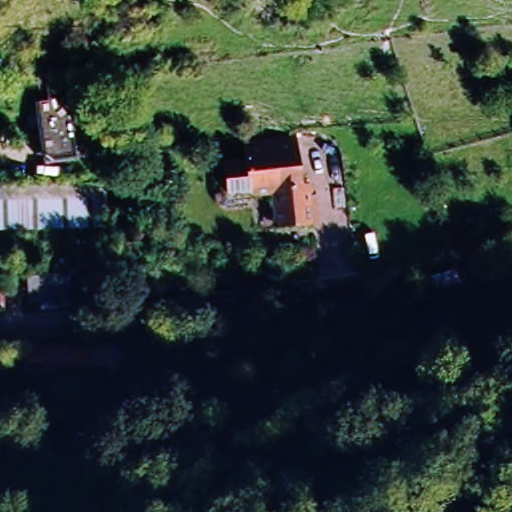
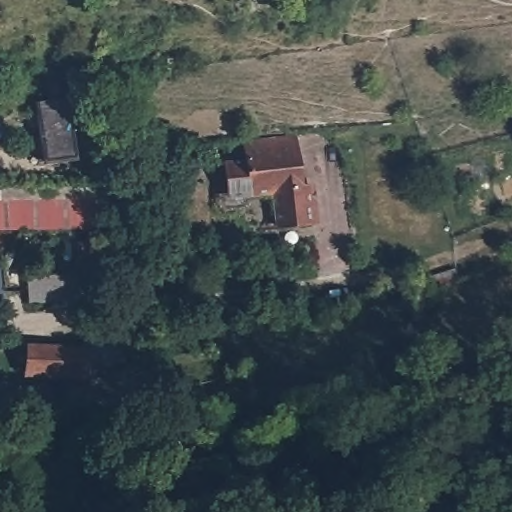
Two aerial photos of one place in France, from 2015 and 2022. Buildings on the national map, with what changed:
unchanged [(70,96),(70,97),(73,122),(77,159),(45,163),(40,126),(37,101),(37,100),(70,96)]
unchanged [(245,160),(243,141),(292,139),(301,189),(317,187),(318,228),(272,227),(271,198),(226,198),(223,161),(245,160)]
unchanged [(103,187),(105,230),(0,233),(0,190),(101,187),(103,187)]
unchanged [(62,274),(62,300),(32,300),(32,274),(62,274)]
unchanged [(109,274),(110,300),(63,300),(63,274),(109,274)]
unchanged [(0,286),(0,293),(1,305),(0,305),(0,286)]
unchanged [(26,376),(26,347),(86,350),(86,348),(105,346),(111,345),(113,363),(87,366),(86,379),(66,378),(26,376)]

